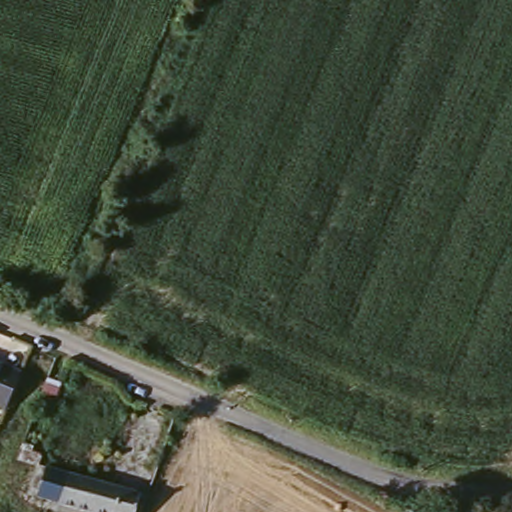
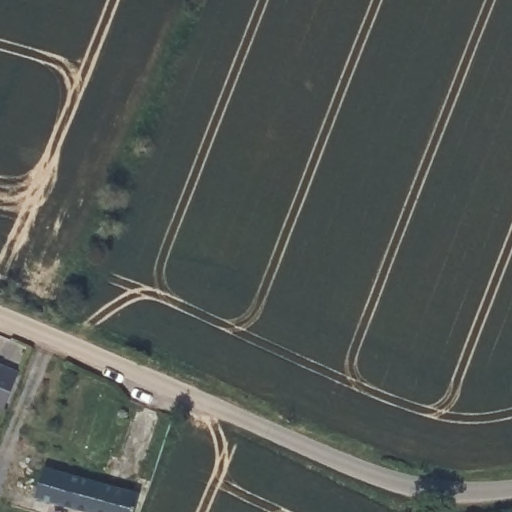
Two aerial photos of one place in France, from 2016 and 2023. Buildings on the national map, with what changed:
unchanged [(7,369),(0,385),(0,366),(7,369)]
unchanged [(40,380),(30,402),(18,398),(27,375),(40,380)]
unchanged [(32,447),(27,461),(7,451),(10,437),(32,447)]
unchanged [(48,510),(52,499),(26,492),(37,460),(64,467),(128,486),(120,512),(56,512),(48,510)]

